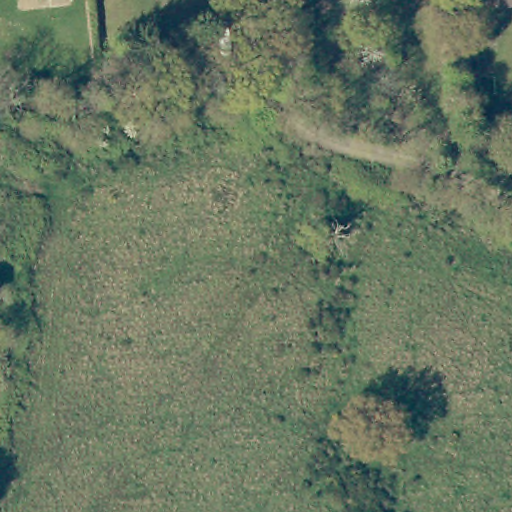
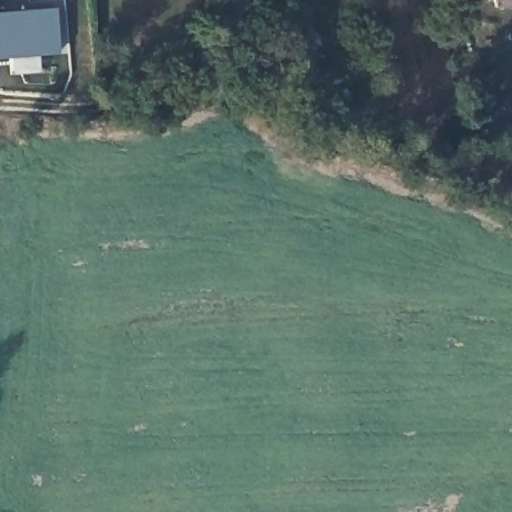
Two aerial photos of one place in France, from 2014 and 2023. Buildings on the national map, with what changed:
unchanged [(496,0),(512,0),(512,3),(497,5),(496,0)]
new [(0,58),(0,10),(54,6),(59,54),(0,58)]

